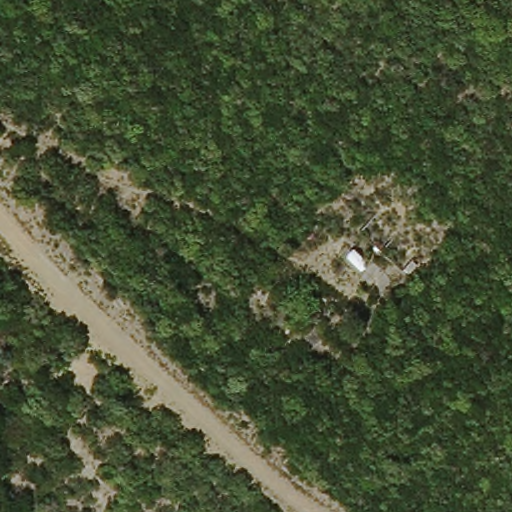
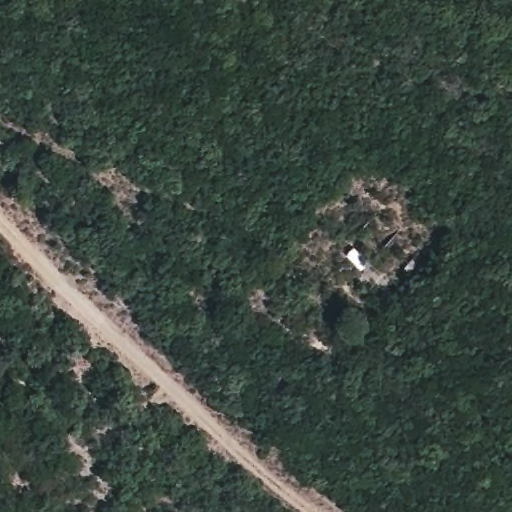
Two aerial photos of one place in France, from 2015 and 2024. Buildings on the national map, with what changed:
unchanged [(350,246),(375,261),(367,272),(342,257),(350,246)]

